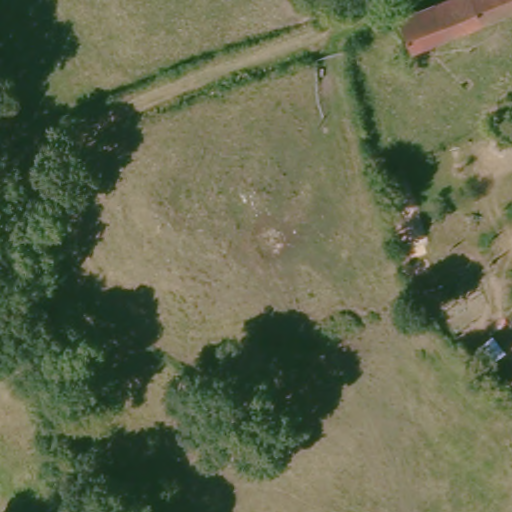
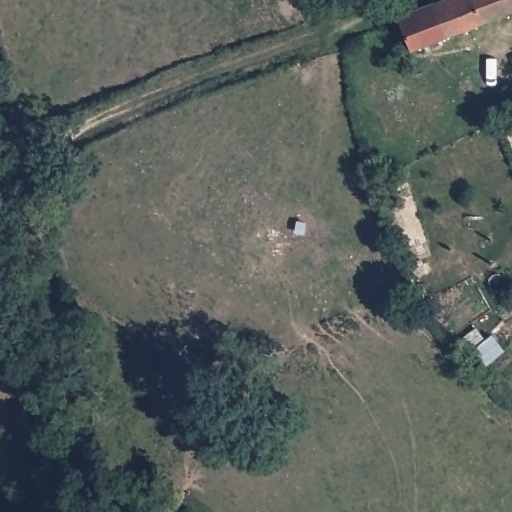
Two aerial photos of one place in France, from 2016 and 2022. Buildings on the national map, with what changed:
unchanged [(409,46),(407,46),(397,15),(399,14),(436,0),(512,0),(512,10),(409,46)]

